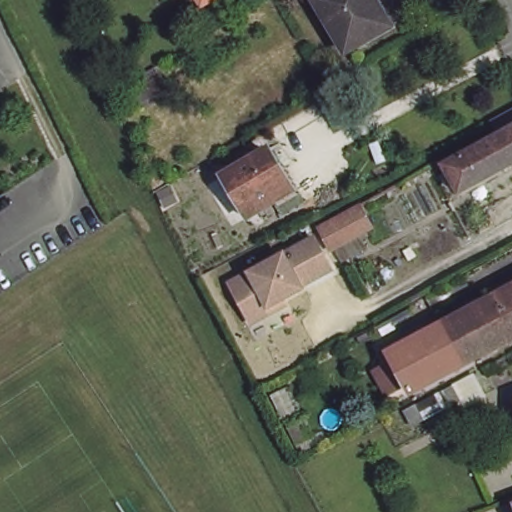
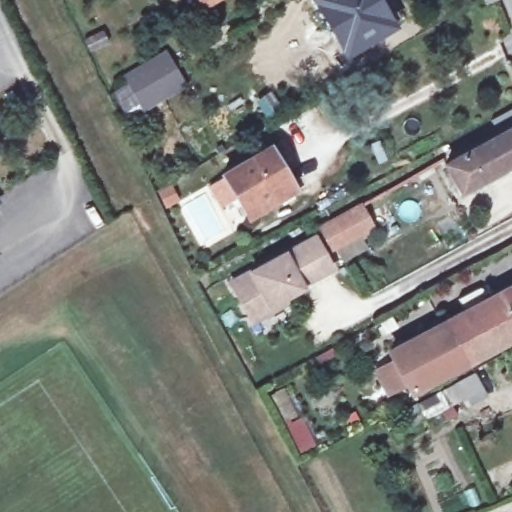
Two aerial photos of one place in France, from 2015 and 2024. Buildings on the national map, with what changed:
unchanged [(204,0),(218,0),(208,6),(204,0)]
unchanged [(351,54),(319,1),(321,0),(377,0),(393,27),(351,54)]
new [(125,82),(121,74),(165,47),(188,85),(142,111),(140,105),(125,113),(111,91),(125,82)]
unchanged [(448,162),(500,135),(494,121),(512,111),(512,165),(465,189),(448,162)]
unchanged [(295,187),(252,211),(230,169),(271,144),(295,187)]
unchanged [(170,186),(176,195),(160,204),(155,195),(170,186)]
unchanged [(361,197),(372,222),(326,245),(336,269),(291,293),(295,301),(252,324),(226,275),(320,228),(316,220),(361,197)]
unchanged [(387,353),(512,285),(512,332),(406,389),(387,353)]
unchanged [(450,404),(425,418),(415,401),(441,387),(450,404)]

